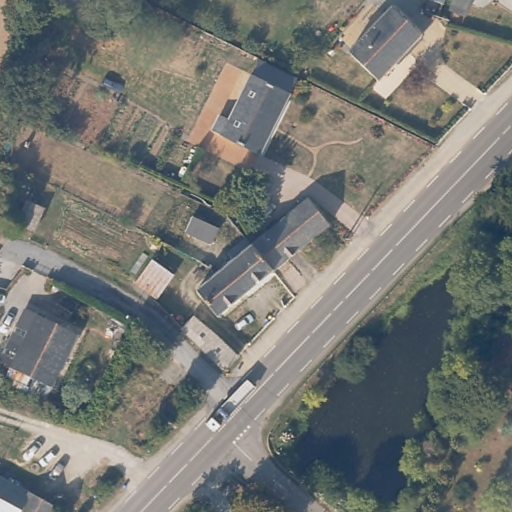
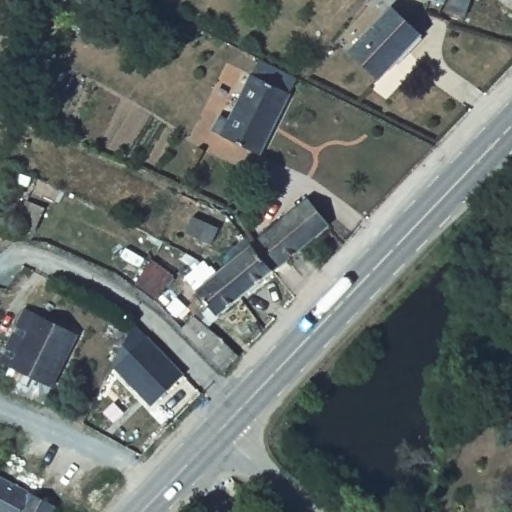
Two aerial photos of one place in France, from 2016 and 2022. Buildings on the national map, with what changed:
unchanged [(443,2),(434,0),(443,0),(443,2)]
unchanged [(468,13),(452,11),(454,0),(471,0),(468,13)]
unchanged [(419,36),(378,75),(348,47),(389,7),(419,36)]
unchanged [(290,89),(257,148),(211,125),(220,109),(232,115),(255,70),(290,89)]
unchanged [(235,260),(230,255),(249,238),(254,244),(268,231),(275,224),(280,220),(306,196),(327,221),(303,243),(290,255),(276,269),(222,317),(200,293),(235,260)]
unchanged [(43,206),(33,229),(17,221),(28,199),(43,206)]
unchanged [(220,230),(212,247),(188,235),(195,219),(220,230)]
unchanged [(179,275),(160,301),(135,282),(154,256),(179,275)]
unchanged [(55,387),(14,367),(1,360),(29,308),(41,313),(82,334),(55,387)]
unchanged [(241,356),(229,369),(185,328),(195,316),(241,356)]
new [(149,335),(187,371),(157,403),(119,367),(149,335)]
unchanged [(52,508),(62,512),(16,512),(0,504),(0,469),(56,499),(52,508)]

